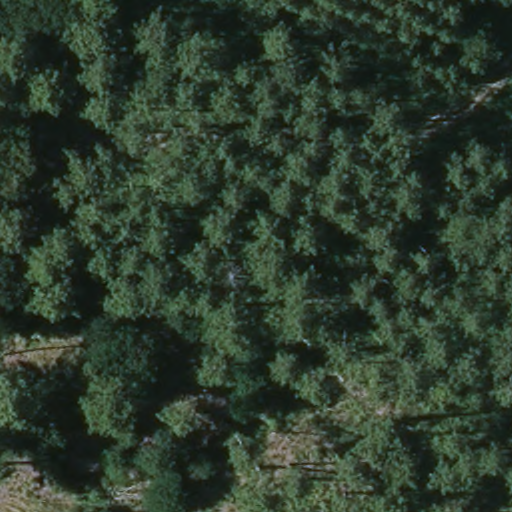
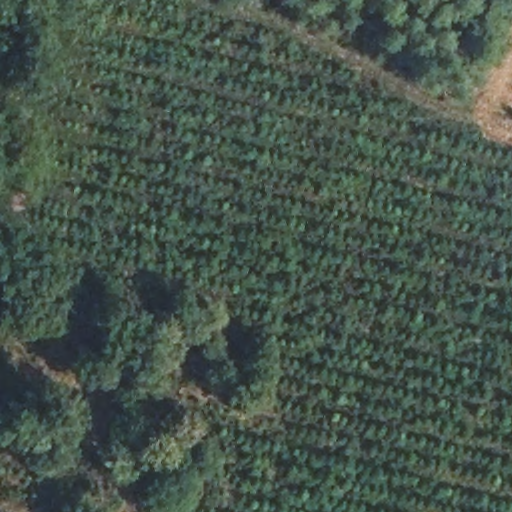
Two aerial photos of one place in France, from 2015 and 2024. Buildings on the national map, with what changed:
[]

